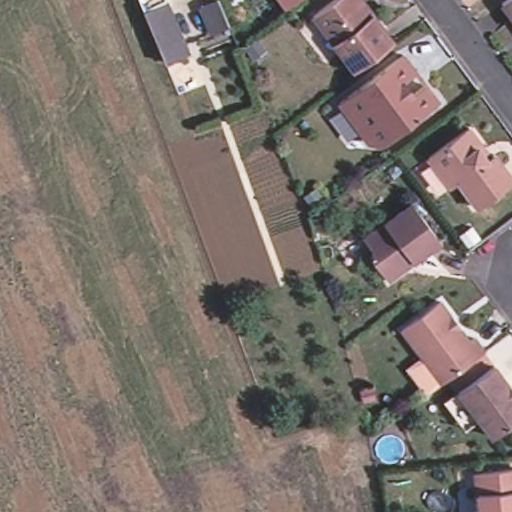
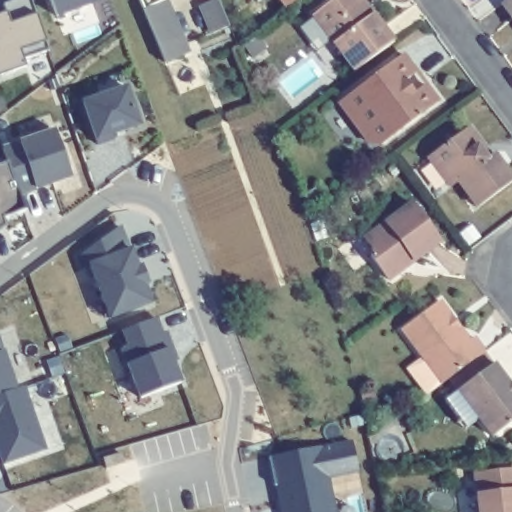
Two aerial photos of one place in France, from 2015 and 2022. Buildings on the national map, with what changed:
new [(6,13),(4,4),(14,0),(32,0),(37,15),(45,42),(48,51),(24,59),(26,68),(0,76),(0,15),(6,13)]
new [(49,0),(105,0),(56,19),(49,0)]
unchanged [(165,65),(144,14),(138,0),(161,0),(163,5),(183,57),(165,65)]
unchanged [(287,13),(279,0),(304,0),(287,13)]
unchanged [(358,75),(316,18),(339,0),(362,0),(375,17),(397,46),(358,75)]
unchanged [(510,0),(512,0),(512,17),(503,5),(510,0)]
unchanged [(230,30),(210,38),(199,10),(219,2),(230,30)]
unchanged [(410,96),(417,91),(422,88),(435,106),(432,108),(385,144),(370,142),(340,103),(395,61),(400,58),(413,75),(409,78),(402,84),(410,96)]
new [(80,102),(130,87),(141,126),(112,137),(113,141),(99,146),(95,143),(80,102)]
new [(7,163),(2,146),(20,140),(58,128),(73,178),(37,190),(20,196),(26,210),(2,220),(5,227),(0,231),(0,165),(7,163)]
unchanged [(477,151),(485,162),(493,157),(512,183),(512,184),(477,211),(457,185),(450,190),(428,160),(467,131),(480,147),(477,151)]
unchanged [(440,245),(388,284),(371,260),(375,257),(365,242),(411,207),(440,245)]
new [(90,267),(80,272),(75,257),(124,225),(131,247),(139,269),(145,267),(150,283),(147,285),(152,304),(109,319),(90,267)]
unchanged [(410,370),(425,360),(404,331),(440,303),(451,317),(449,320),(456,330),(459,330),(461,331),(470,342),(474,339),(485,354),(444,386),(430,397),(410,370)]
new [(127,365),(122,347),(127,345),(122,332),(159,319),(170,349),(180,384),(140,400),(127,365)]
new [(0,459),(0,340),(4,352),(17,390),(25,387),(45,451),(2,467),(0,459)]
unchanged [(459,393),(494,365),(509,385),(508,391),(512,396),(512,424),(494,438),(480,421),(466,432),(445,403),(459,393)]
new [(354,442),(359,472),(329,477),(334,512),(281,512),(270,458),(354,442)]
new [(109,455),(125,450),(129,460),(112,466),(109,455)]
unchanged [(512,472),(512,512),(480,512),(476,476),(512,472)]

